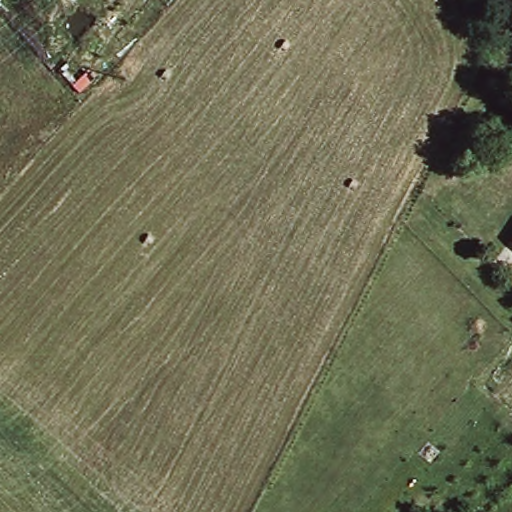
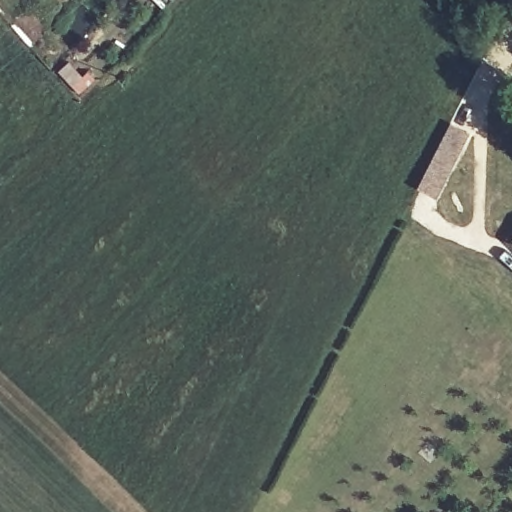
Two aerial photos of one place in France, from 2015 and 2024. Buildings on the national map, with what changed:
new [(467,131),(461,151),(437,198),(417,188),(451,123),(467,131)]
unchanged [(512,238),(512,243),(510,241),(512,238)]

